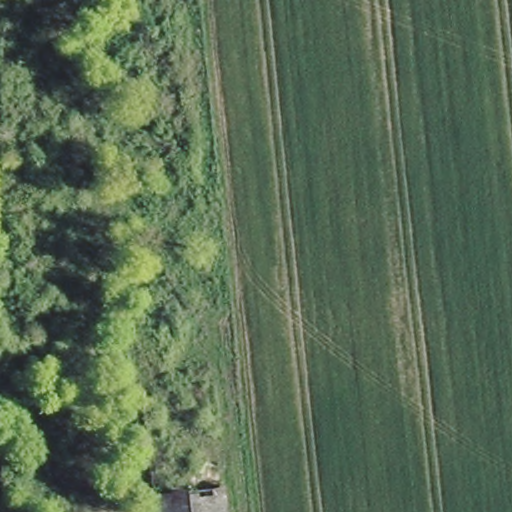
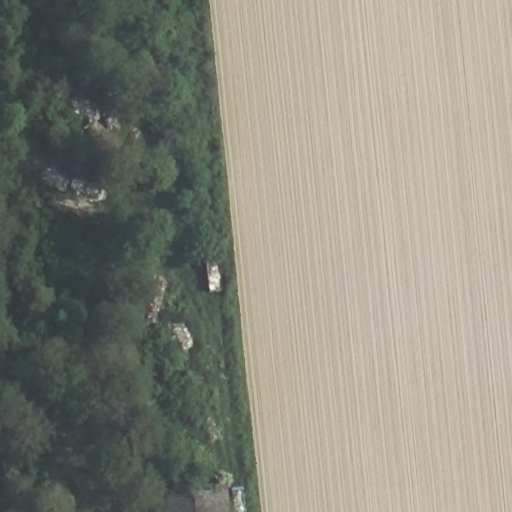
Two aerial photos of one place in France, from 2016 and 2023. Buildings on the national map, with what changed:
unchanged [(150,512),(147,488),(217,480),(220,508),(187,512),(150,512)]
unchanged [(187,512),(220,508),(220,512),(187,512)]

